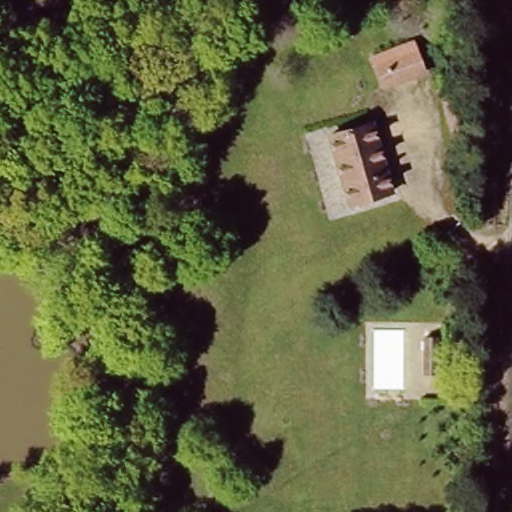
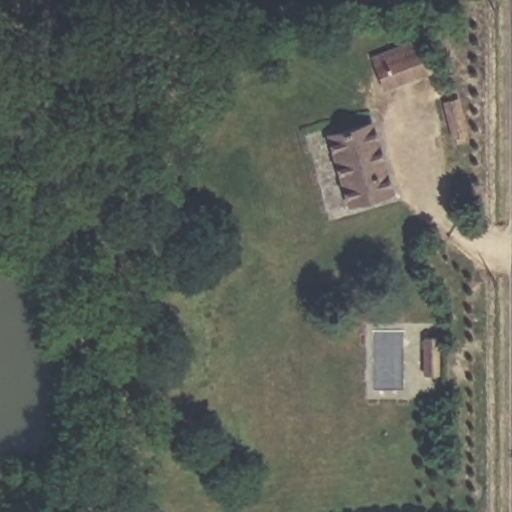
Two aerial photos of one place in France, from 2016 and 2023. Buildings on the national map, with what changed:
unchanged [(383,54),(419,39),(431,68),(394,84),(383,54)]
unchanged [(333,130),(371,118),(392,189),(354,201),(333,130)]
unchanged [(429,379),(429,344),(439,344),(439,379),(429,379)]

